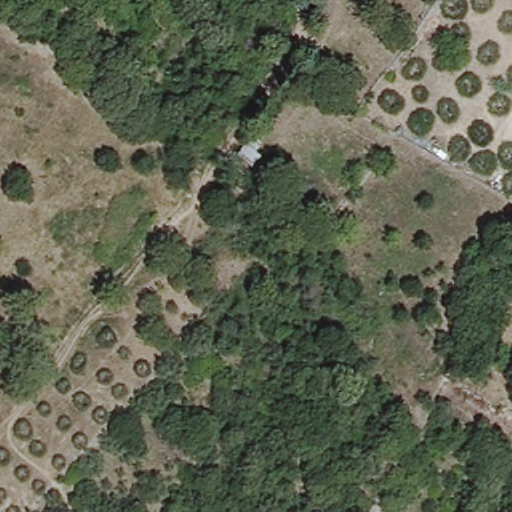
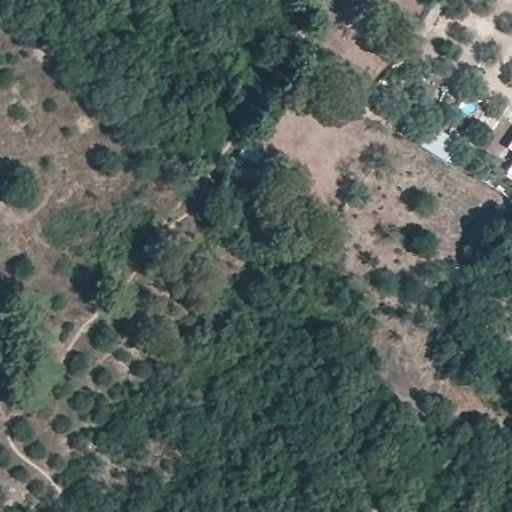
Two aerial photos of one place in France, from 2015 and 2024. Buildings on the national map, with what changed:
unchanged [(255,154),(259,157),(251,167),(236,156),(251,136),(262,145),(255,154)]
unchanged [(236,197),(228,191),(233,184),(241,191),(236,197)]

